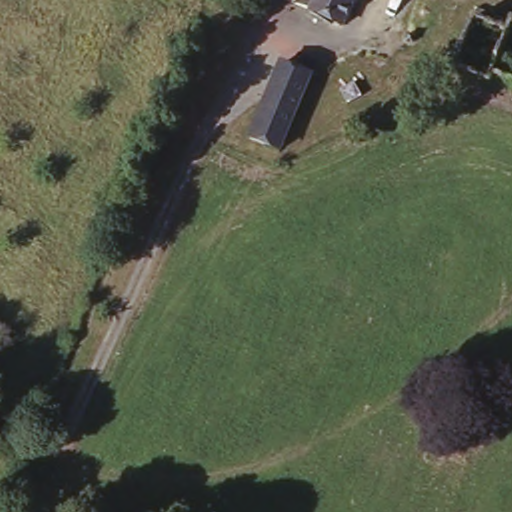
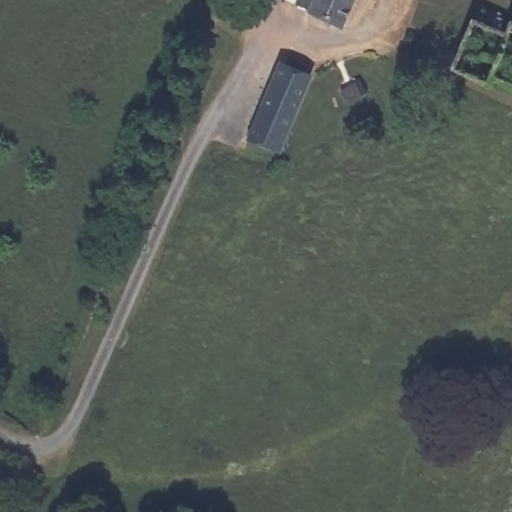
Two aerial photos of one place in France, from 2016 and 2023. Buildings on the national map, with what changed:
unchanged [(335,18),(291,0),(344,0),(335,18)]
unchanged [(276,151),(249,140),(286,64),(314,78),(276,151)]

